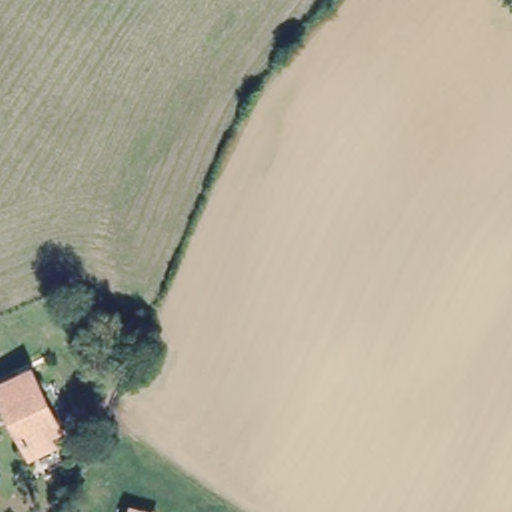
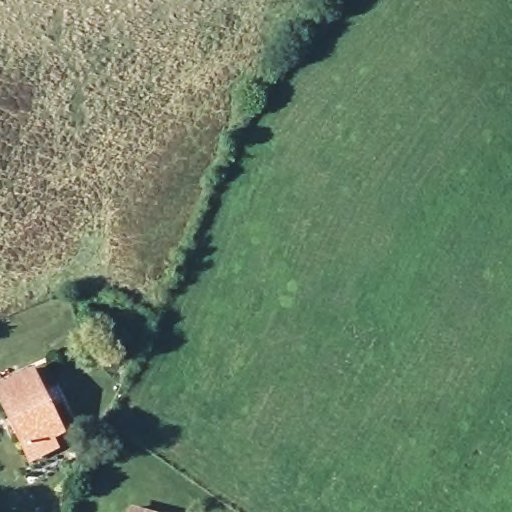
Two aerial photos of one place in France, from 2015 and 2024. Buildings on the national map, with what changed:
unchanged [(21,440),(0,395),(0,380),(29,366),(55,426),(45,430),(50,445),(27,454),(21,440)]
unchanged [(136,512),(126,512),(127,510),(136,512)]

